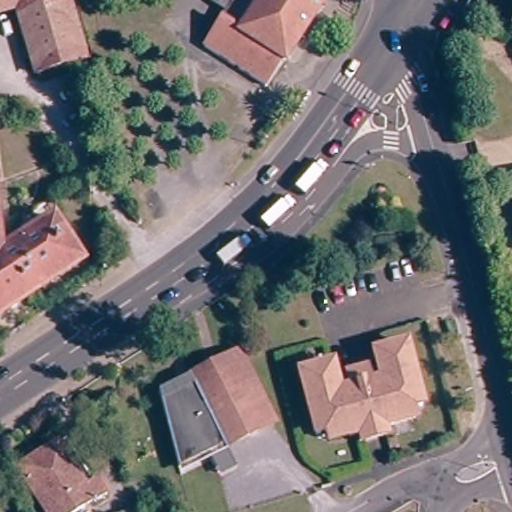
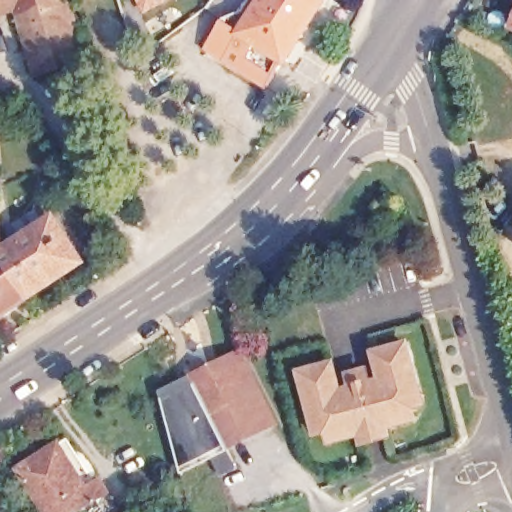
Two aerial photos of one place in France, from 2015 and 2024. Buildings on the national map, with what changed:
unchanged [(32,65),(13,0),(61,0),(77,51),(32,65)]
new [(141,0),(165,0),(147,10),(141,0)]
unchanged [(286,65),(272,88),(211,49),(234,12),(216,0),(330,0),(288,66),(286,65)]
unchanged [(82,268),(29,303),(3,259),(54,225),(82,268)]
unchanged [(3,259),(29,303),(0,322),(0,233),(3,259)]
unchanged [(360,445),(357,437),(352,438),(330,444),(327,432),(317,435),(301,372),(332,365),(339,391),(381,380),(374,353),(406,345),(422,407),(413,410),(416,421),(394,427),(389,428),(391,437),(360,445)]
unchanged [(209,455),(180,469),(166,417),(162,402),(161,401),(160,395),(191,380),(240,355),(244,361),(276,425),(226,450),(235,467),(219,475),(209,455)]
unchanged [(101,480),(108,492),(77,512),(45,512),(19,470),(31,462),(59,445),(64,453),(87,490),(101,480)]

